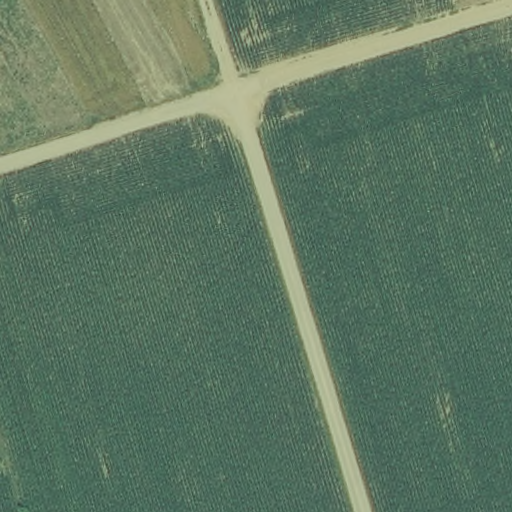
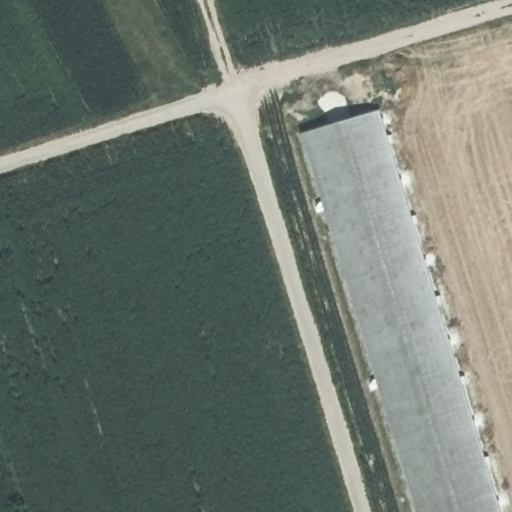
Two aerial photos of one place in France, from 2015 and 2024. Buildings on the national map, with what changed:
new [(503,512),(417,512),(302,134),(382,110),(503,512)]

